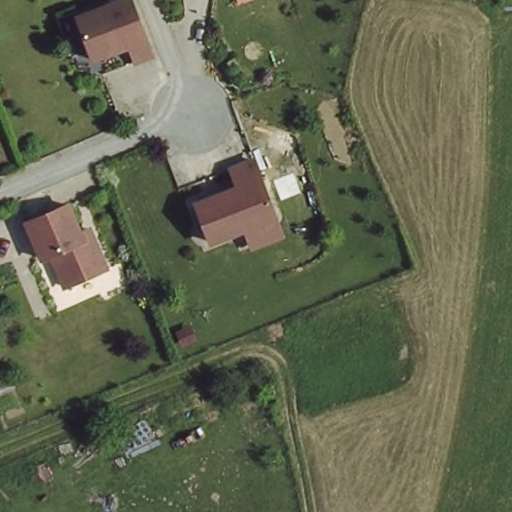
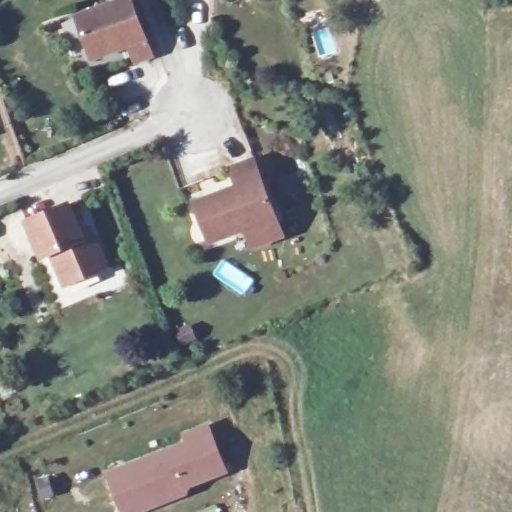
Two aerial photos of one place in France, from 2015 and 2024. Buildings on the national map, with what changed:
unchanged [(132,63),(126,47),(90,60),(75,19),(125,0),(128,0),(144,41),(150,57),(132,63)]
unchanged [(255,246),(249,228),(213,241),(200,204),(241,188),(235,168),(258,161),(280,216),(285,234),(255,246)]
unchanged [(83,237),(92,233),(95,239),(110,272),(68,290),(53,258),(45,261),(30,226),(72,209),(83,237)]
new [(102,474),(153,454),(161,451),(182,443),(179,435),(201,426),(218,470),(182,485),(179,492),(159,500),(129,512),(117,512),(109,492),(102,474)]

